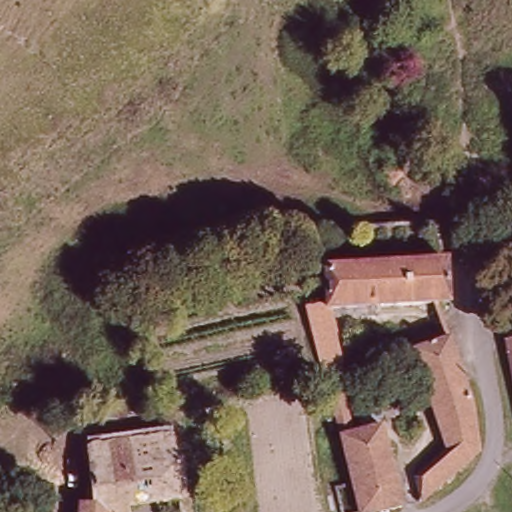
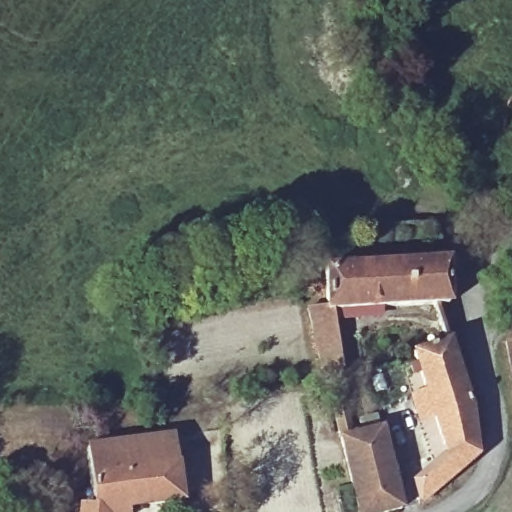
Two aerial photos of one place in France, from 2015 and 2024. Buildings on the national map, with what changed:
unchanged [(449,313),(441,313),(428,314),(331,316),(329,274),(451,269),(451,272),(449,296),(449,313)]
unchanged [(344,383),(325,388),(306,319),(331,316),(344,383)]
unchanged [(482,464),(427,506),(423,508),(414,490),(451,461),(416,359),(452,349),(459,370),(482,464)]
unchanged [(404,512),(354,512),(338,447),(383,434),(404,512)]
unchanged [(85,456),(164,442),(168,450),(177,507),(134,512),(93,512),(85,456)]

